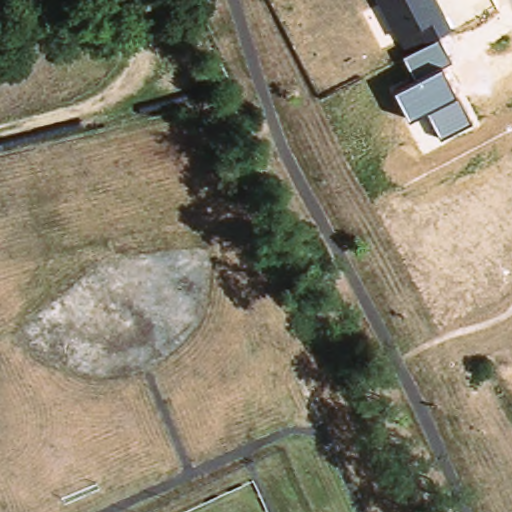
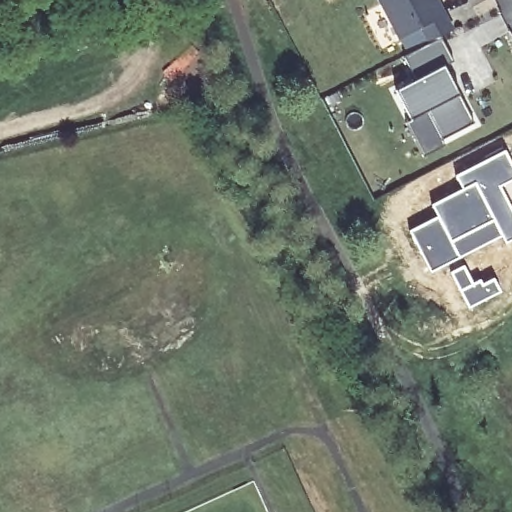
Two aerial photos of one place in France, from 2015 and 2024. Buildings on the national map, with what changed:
unchanged [(454,28),(440,35),(407,54),(380,0),(440,0),(454,28)]
unchanged [(454,62),(446,67),(474,122),(443,137),(429,110),(409,120),(394,92),(417,80),(404,55),(407,54),(440,35),(454,62)]
new [(435,215),(429,205),(459,187),(453,175),(505,147),(512,162),(512,180),(501,185),(512,207),(512,239),(505,243),(502,236),(430,272),(408,230),(435,215)]
new [(464,263),(474,281),(481,278),(483,280),(496,275),(503,291),(469,308),(449,271),(464,263)]

